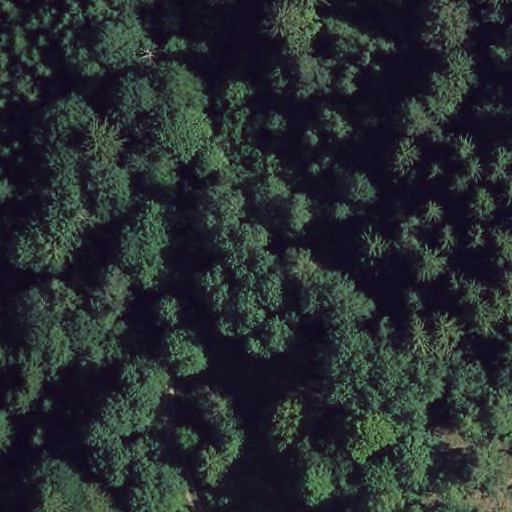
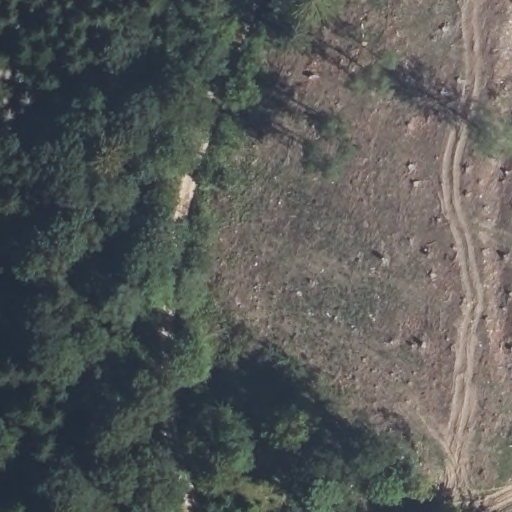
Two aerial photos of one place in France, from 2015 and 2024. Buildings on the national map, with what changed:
unchanged [(37,374),(32,410),(3,410),(2,372),(37,374)]

